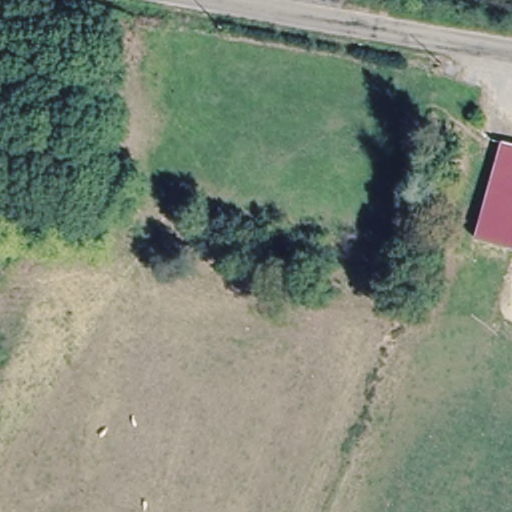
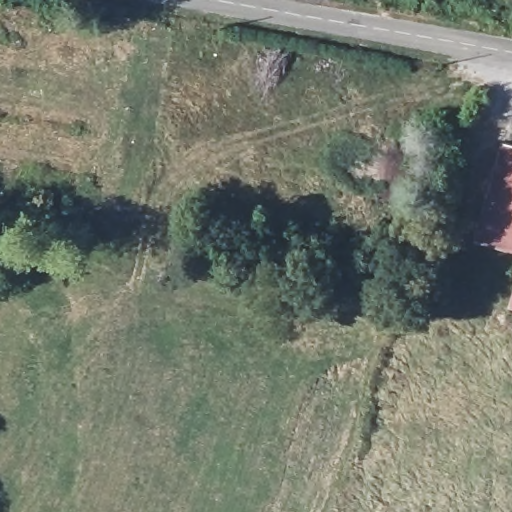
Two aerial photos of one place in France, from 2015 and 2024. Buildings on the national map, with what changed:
unchanged [(512,145),(512,248),(477,237),(503,142),(512,145)]

